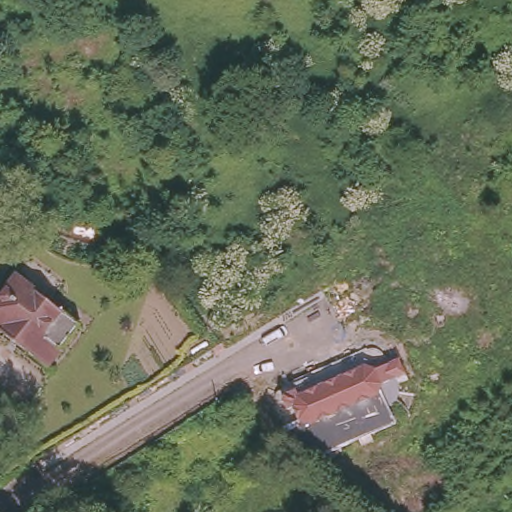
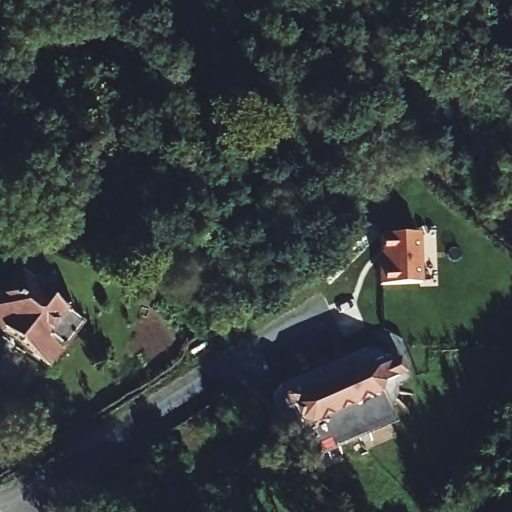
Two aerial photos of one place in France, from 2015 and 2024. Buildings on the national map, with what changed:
new [(422,282),(381,283),(379,234),(419,232),(422,282)]
unchanged [(0,331),(0,297),(15,277),(39,294),(43,289),(57,300),(53,305),(76,322),(44,364),(0,331)]
unchanged [(304,430),(299,417),(293,419),(289,410),(293,402),(356,374),(379,379),(405,368),(411,380),(379,394),(394,429),(304,469),(289,437),(304,430)]

